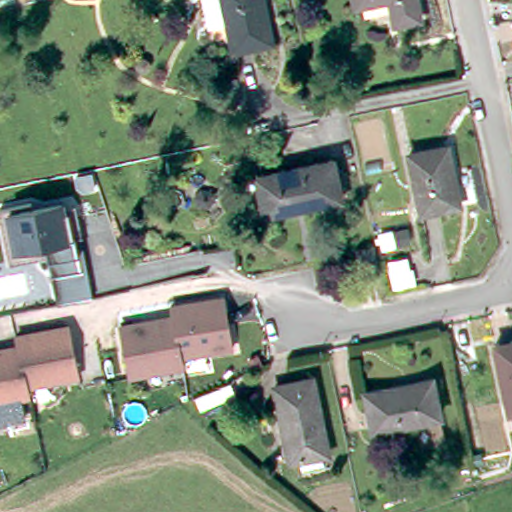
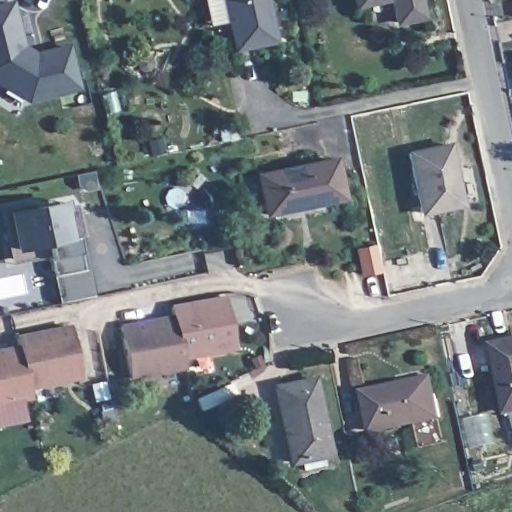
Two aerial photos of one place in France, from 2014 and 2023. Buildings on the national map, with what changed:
new [(37,51),(69,44),(78,90),(27,103),(0,87),(0,2),(7,0),(12,0),(23,44),(37,51)]
unchanged [(224,0),(264,0),(273,37),(234,46),(224,0)]
unchanged [(355,0),(373,0),(356,3),(355,0)]
unchanged [(391,0),(418,0),(421,16),(396,21),(391,0)]
unchanged [(421,211),(408,152),(447,145),(458,204),(421,211)]
unchanged [(269,214),(260,176),(334,158),(343,197),(269,214)]
unchanged [(59,302),(51,257),(12,264),(1,212),(61,200),(63,209),(72,206),(84,250),(92,295),(59,302)]
unchanged [(371,277),(365,251),(382,247),(387,273),(371,277)]
unchanged [(172,305),(182,303),(223,295),(233,345),(198,351),(182,355),(174,315),(172,305)]
unchanged [(146,320),(174,315),(182,355),(184,364),(163,368),(131,374),(122,325),(146,320)]
unchanged [(21,345),(20,336),(71,325),(82,373),(30,385),(32,394),(26,396),(0,401),(0,350),(21,345)]
unchanged [(495,342),(512,339),(512,409),(509,410),(495,342)]
unchanged [(368,423),(361,387),(428,372),(435,410),(368,423)]
unchanged [(290,459),(275,383),(313,375),(328,450),(290,459)]
unchanged [(26,396),(31,421),(0,427),(0,401),(26,396)]

